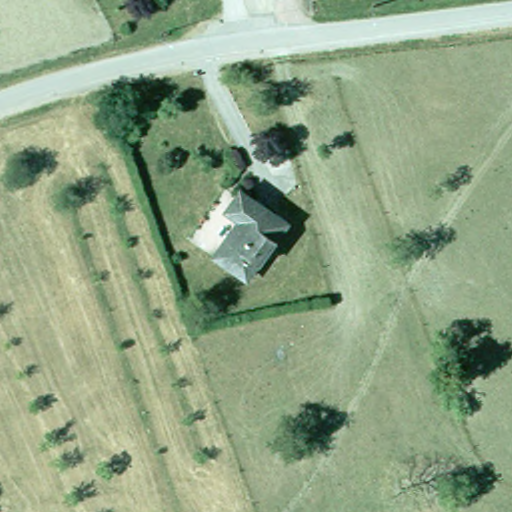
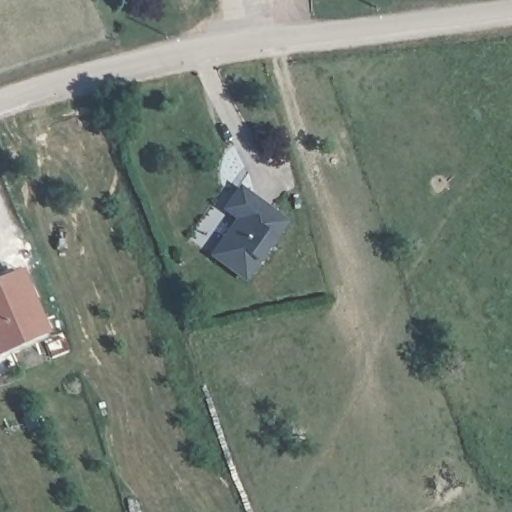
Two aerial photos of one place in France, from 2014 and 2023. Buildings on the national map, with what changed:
unchanged [(286,220),(247,274),(219,251),(244,215),(233,205),(245,191),(286,220)]
new [(49,334),(0,356),(0,279),(22,271),(49,334)]

